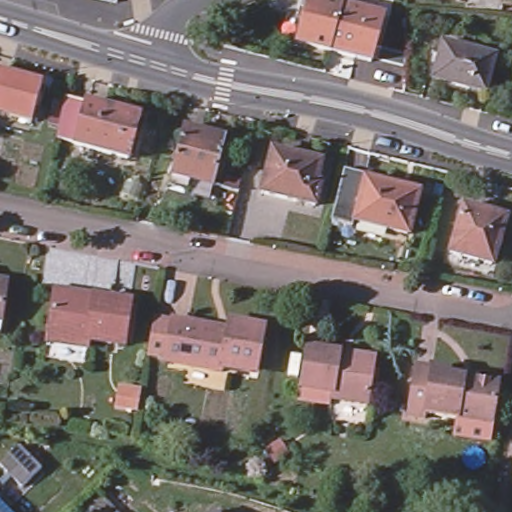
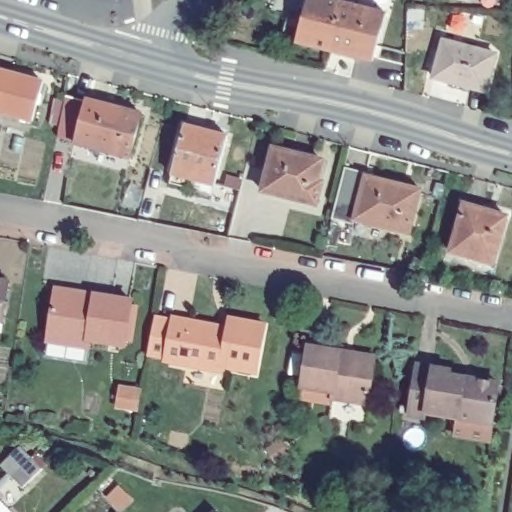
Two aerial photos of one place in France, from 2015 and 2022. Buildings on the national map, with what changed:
unchanged [(327,50),(294,41),(305,0),(327,0),(340,4),(382,16),(370,62),(327,50)]
unchanged [(484,92),(432,79),(442,42),(493,56),(484,92)]
unchanged [(0,113),(0,72),(45,85),(35,122),(0,113)]
unchanged [(143,117),(133,159),(83,146),(61,141),(72,100),(93,105),(94,104),(143,117)]
unchanged [(162,181),(165,170),(178,122),(218,133),(205,181),(183,175),(182,186),(162,181)]
unchanged [(253,192),(265,149),(313,162),(318,163),(312,187),(307,207),(253,192)]
unchanged [(357,222),(356,227),(333,222),(348,169),(370,174),(368,179),(357,222)]
unchanged [(422,193),(410,237),(357,222),(368,179),(422,193)]
unchanged [(440,202),(428,199),(432,187),(443,190),(440,202)]
unchanged [(487,265),(446,252),(460,205),(502,217),(487,265)]
unchanged [(128,337),(122,336),(120,341),(85,335),(84,343),(42,336),(50,290),(52,283),(90,289),(128,296),(127,301),(133,302),(128,337)]
unchanged [(0,325),(0,284),(10,286),(4,326),(0,325)]
unchanged [(230,333),(232,325),(267,330),(261,376),(228,372),(227,377),(167,367),(147,363),(153,323),(173,326),(174,325),(230,333)]
unchanged [(368,403),(331,397),(332,392),(300,385),(308,342),(377,353),(368,403)]
unchanged [(492,423),(428,412),(427,417),(410,414),(419,362),(450,367),(450,371),(466,374),(465,377),(498,383),(492,423)]
unchanged [(10,476),(0,467),(0,462),(16,446),(28,457),(40,467),(20,487),(10,476)]
unchanged [(127,504),(135,512),(119,512),(127,504)]
unchanged [(0,510),(2,512),(0,512),(0,510)]

